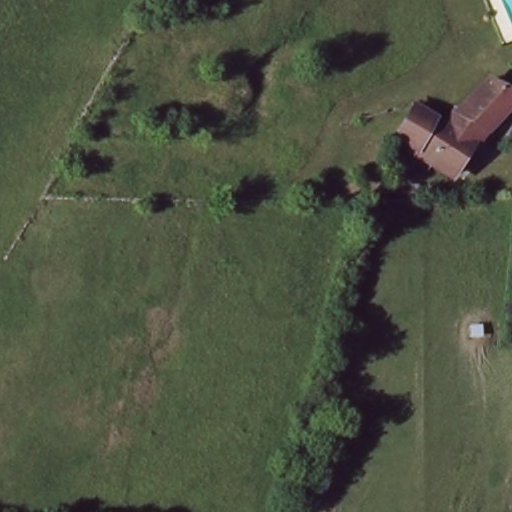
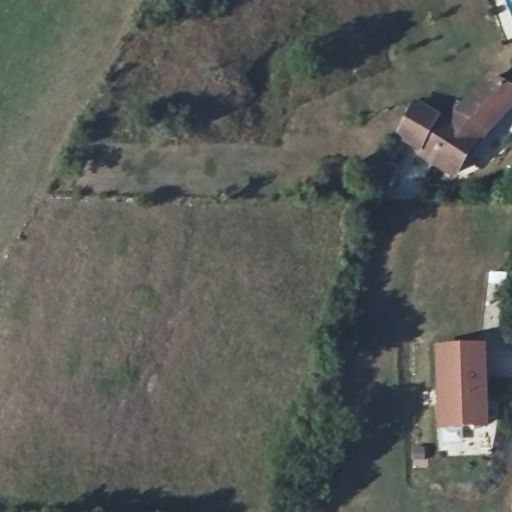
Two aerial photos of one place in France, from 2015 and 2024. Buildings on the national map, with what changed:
unchanged [(512,94),(512,112),(478,136),(458,169),(398,144),(412,112),(449,128),(470,102),(495,80),(506,89),(512,94)]
new [(435,346),(486,343),(490,428),(438,429),(435,346)]

